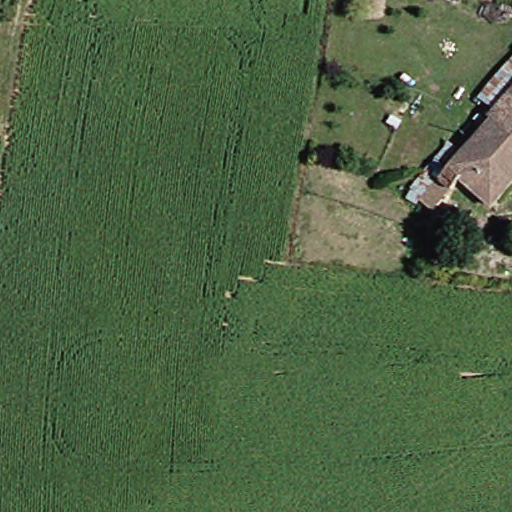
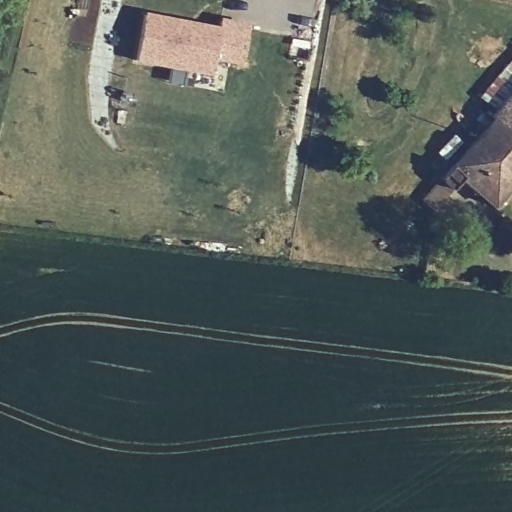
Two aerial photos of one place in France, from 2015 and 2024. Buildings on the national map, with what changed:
new [(210,77),(136,63),(146,13),(218,27),(219,18),(248,24),(239,66),(213,61),(210,77)]
unchanged [(498,109),(512,95),(512,189),(499,204),(467,176),(450,192),(437,181),(502,116),(498,109)]

